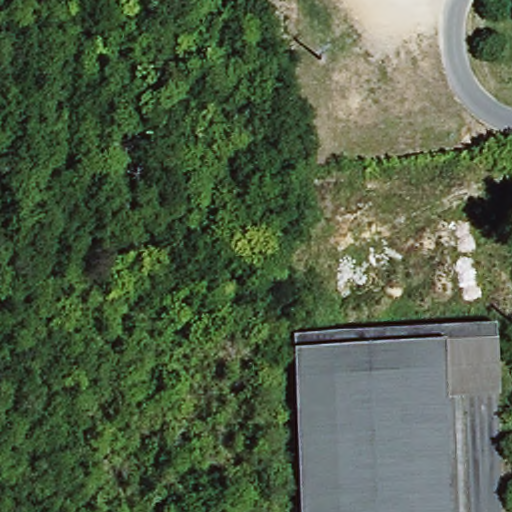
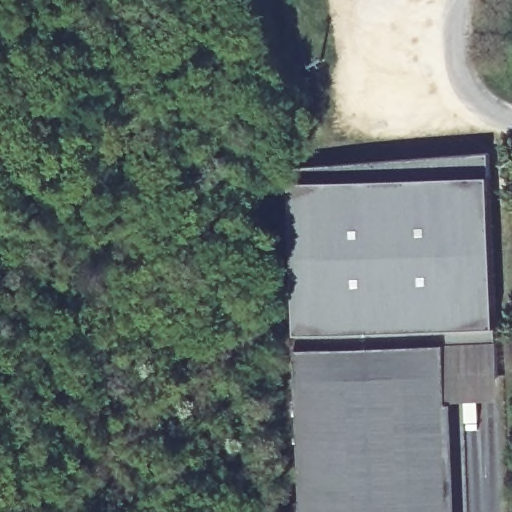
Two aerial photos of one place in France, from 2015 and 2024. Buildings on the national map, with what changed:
new [(491,174),(497,330),(302,330),(302,333),(295,331),(290,184),(288,166),(490,153),(491,174)]
unchanged [(505,330),(505,382),(454,382),(457,512),(307,512),(302,330),(505,330)]

